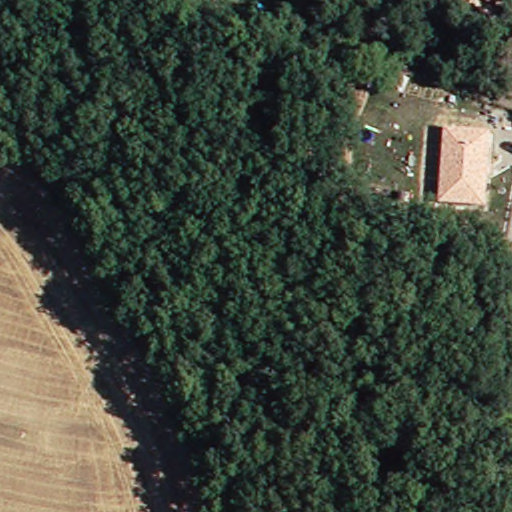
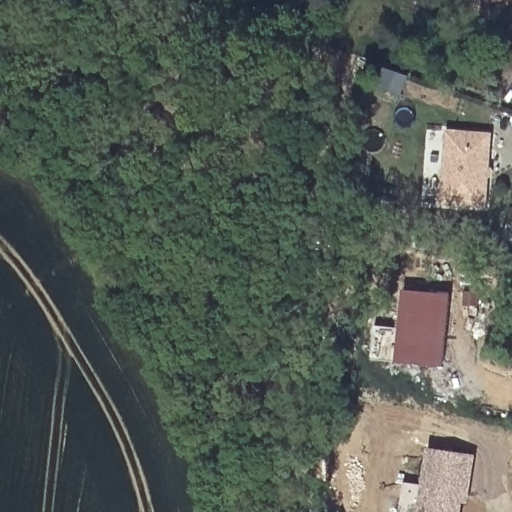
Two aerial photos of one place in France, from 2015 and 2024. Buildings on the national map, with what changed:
unchanged [(512,15),(491,0),(512,0),(512,14),(512,15)]
unchanged [(487,207),(440,206),(446,130),(492,133),(487,207)]
new [(442,366),(395,362),(402,290),(450,295),(442,366)]
new [(419,488),(426,447),(471,454),(466,488),(469,489),(468,503),(463,503),(462,512),(402,512),(405,487),(419,488)]

